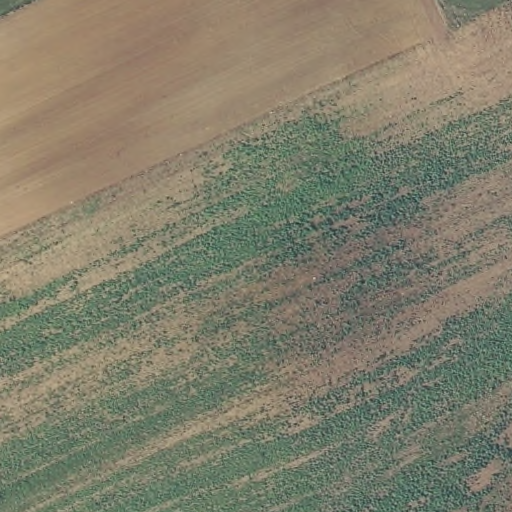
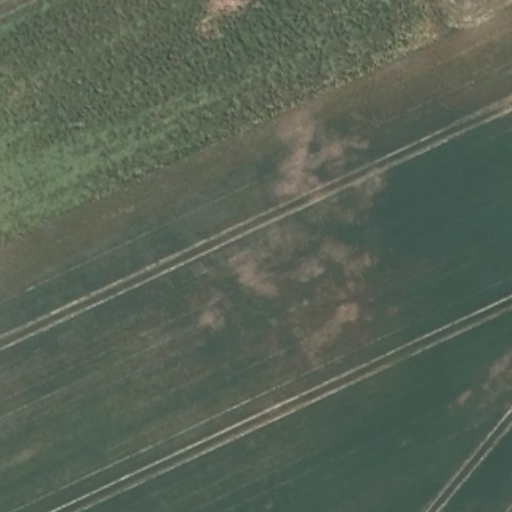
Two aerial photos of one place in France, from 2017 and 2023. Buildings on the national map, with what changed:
[]

